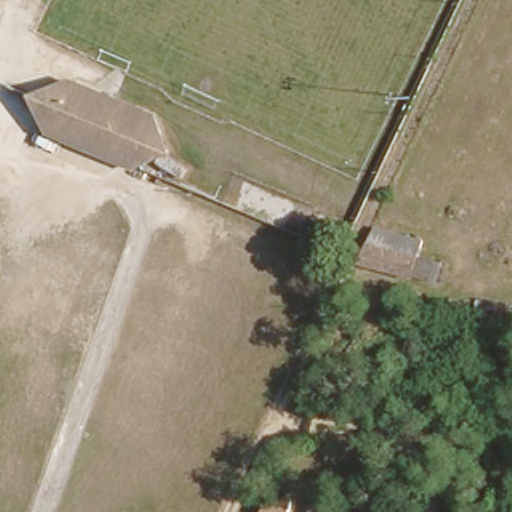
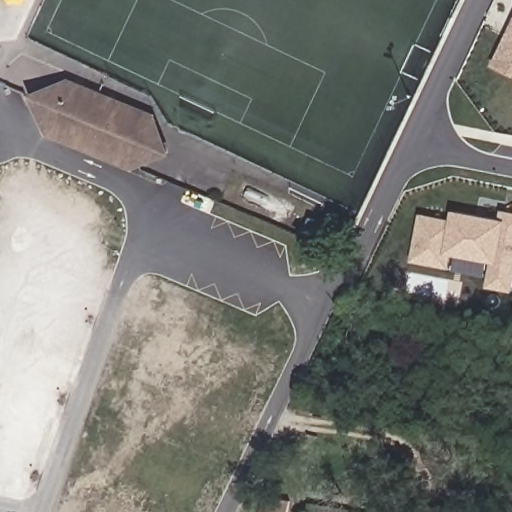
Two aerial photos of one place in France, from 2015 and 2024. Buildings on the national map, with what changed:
new [(512,75),(487,65),(512,17),(512,75)]
unchanged [(146,153),(133,159),(97,145),(38,121),(34,107),(27,87),(44,80),(63,72),(152,110),(158,126),(165,147),(146,153)]
new [(450,207),(495,216),(498,207),(512,211),(512,285),(511,291),(486,286),(487,276),(451,270),(443,269),(410,262),(417,211),(447,219),(450,207)]
demolished [(423,252),(412,274),(402,271),(361,256),(377,222),(418,237),(428,241),(423,252)]
unchanged [(378,509),(378,512),(303,512),(306,494),(378,509)]
unchanged [(287,499),(294,500),(292,512),(264,512),(267,495),(287,499)]

